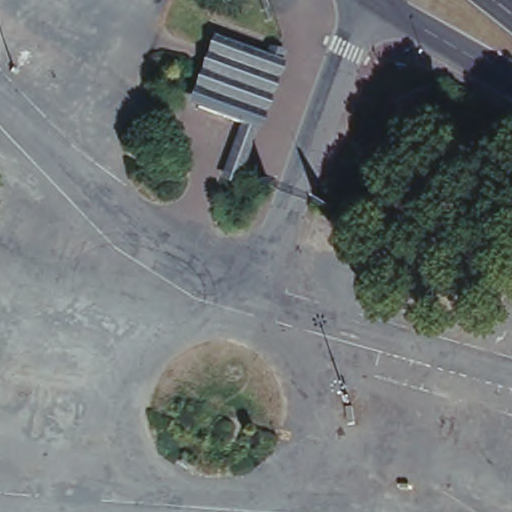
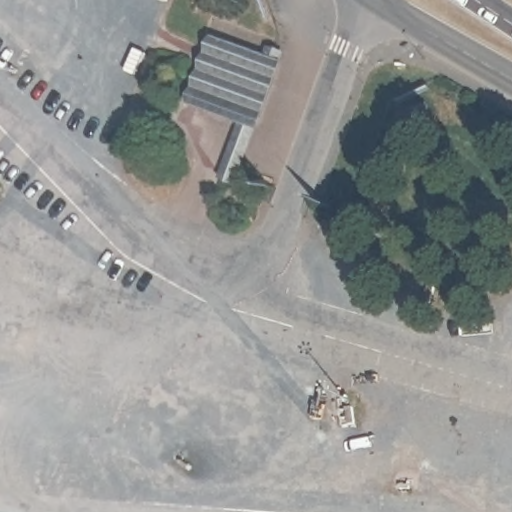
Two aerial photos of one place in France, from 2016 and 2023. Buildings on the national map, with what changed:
unchanged [(263,116),(259,114),(255,121),(254,126),(245,122),(202,107),(193,104),(217,36),(227,39),(279,57),(274,69),(279,71),(263,116)]
unchanged [(225,179),(245,122),(254,126),(263,129),(242,185),(225,179)]

